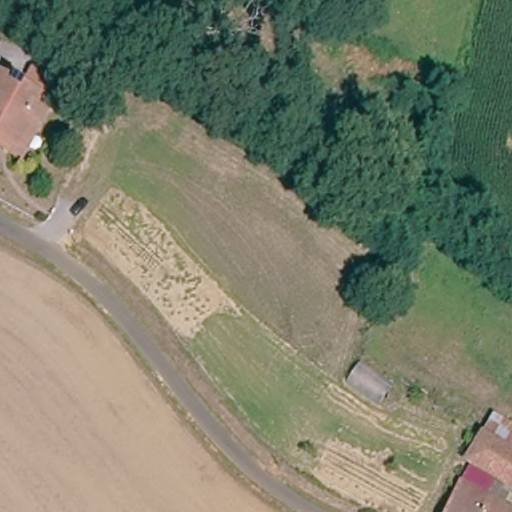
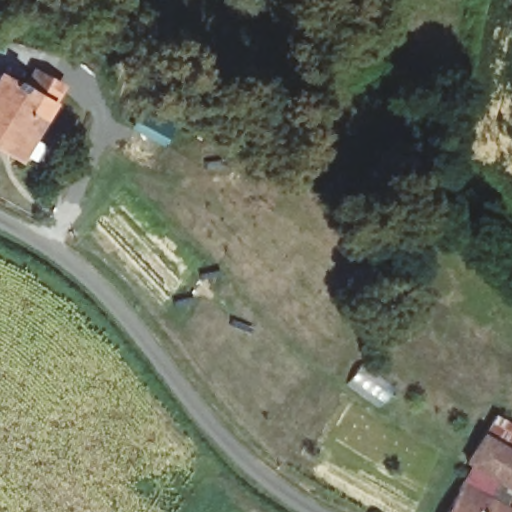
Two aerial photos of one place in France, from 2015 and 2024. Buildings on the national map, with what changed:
unchanged [(0,76),(50,104),(44,115),(20,157),(0,147),(0,76)]
unchanged [(512,452),(512,489),(469,463),(465,461),(482,434),(512,452)]
unchanged [(510,512),(446,512),(460,484),(511,509),(510,512)]

